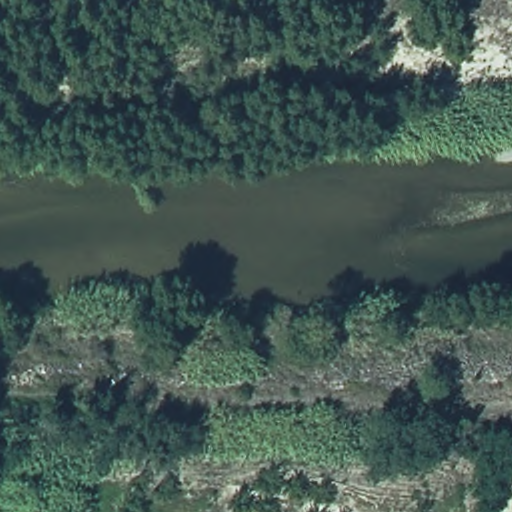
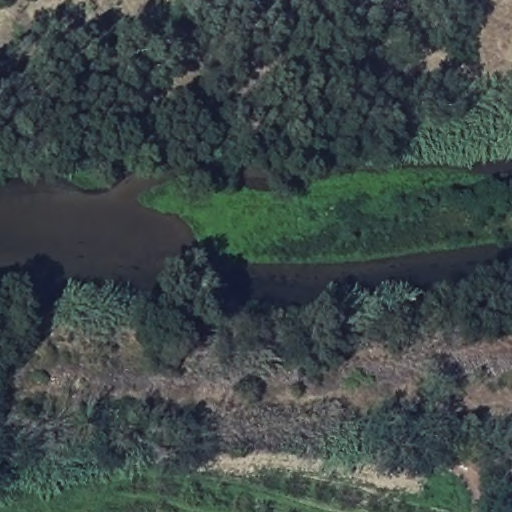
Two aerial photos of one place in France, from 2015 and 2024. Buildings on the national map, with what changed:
[]

